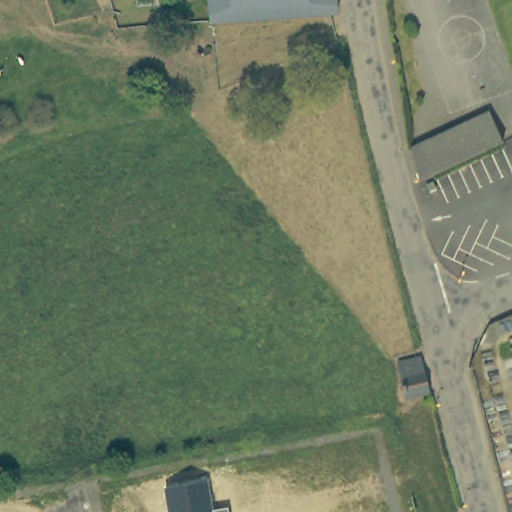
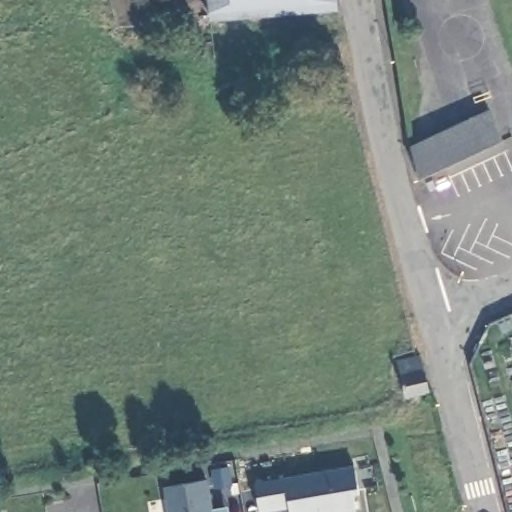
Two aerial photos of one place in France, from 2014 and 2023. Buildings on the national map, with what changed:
unchanged [(212,20),(211,0),(337,0),(337,7),(212,20)]
unchanged [(414,141),(491,106),(501,142),(422,178),(414,141)]
unchanged [(498,327),(494,337),(485,332),(489,323),(498,327)]
unchanged [(397,391),(390,357),(414,353),(421,386),(397,391)]
new [(357,511),(349,512),(293,512),(292,506),(265,511),(260,482),(356,466),(361,493),(353,496),(357,511)]
unchanged [(212,510),(227,507),(228,512),(169,512),(165,487),(209,480),(212,510)]

